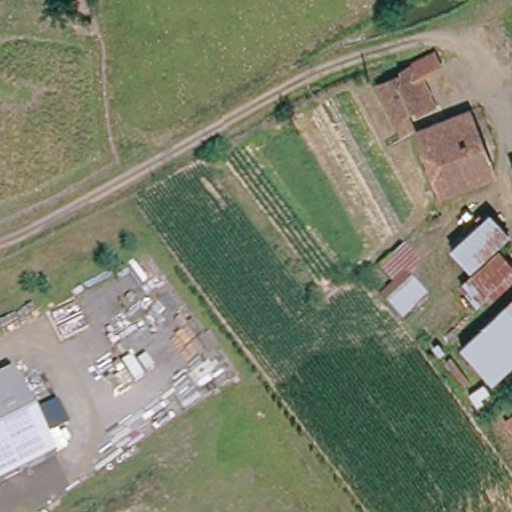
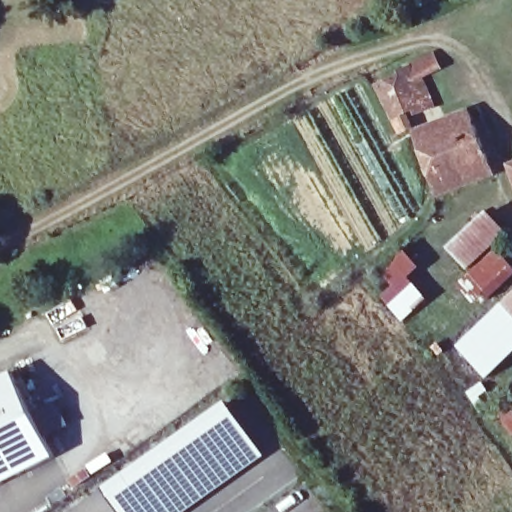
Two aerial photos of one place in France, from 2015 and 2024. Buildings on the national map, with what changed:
unchanged [(431,55),(438,69),(429,73),(435,85),(426,89),(434,105),(418,114),(415,108),(401,115),(408,128),(397,133),(374,84),(431,55)]
unchanged [(468,117),(491,177),(440,199),(416,137),(468,117)]
unchanged [(489,210),(508,234),(471,274),(447,249),(489,210)]
unchanged [(391,285),(377,272),(403,250),(418,267),(409,275),(427,299),(403,320),(377,297),(391,285)]
unchanged [(512,358),(491,378),(457,347),(512,295),(512,358)]
unchanged [(0,486),(0,381),(15,374),(57,458),(0,486)]
new [(265,456),(186,512),(121,512),(103,488),(229,401),(265,456)]

